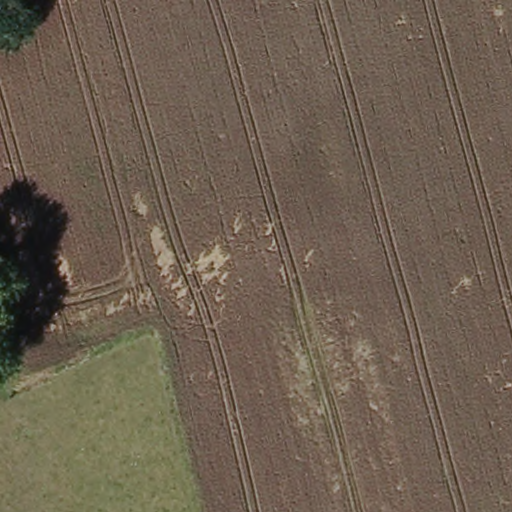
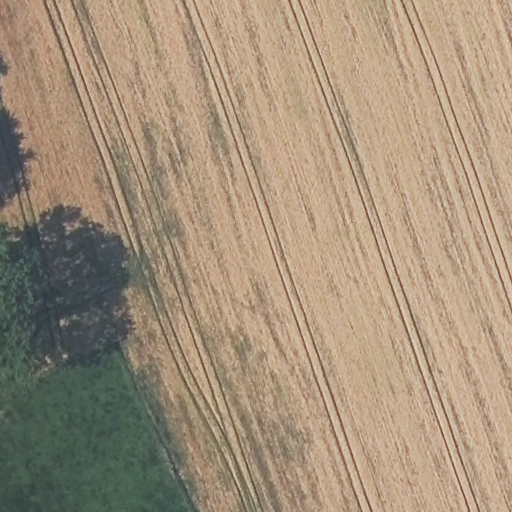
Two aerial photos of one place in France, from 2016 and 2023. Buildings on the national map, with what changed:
[]

